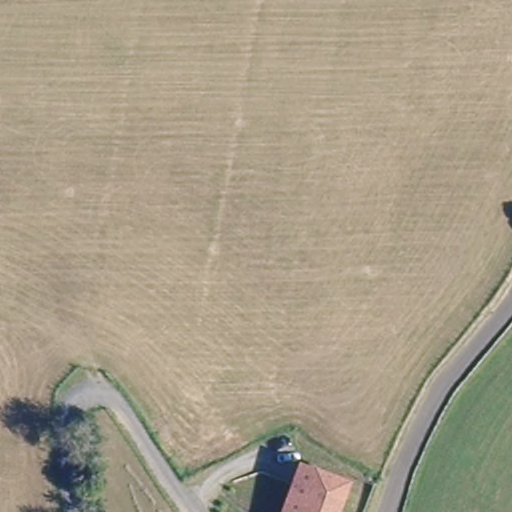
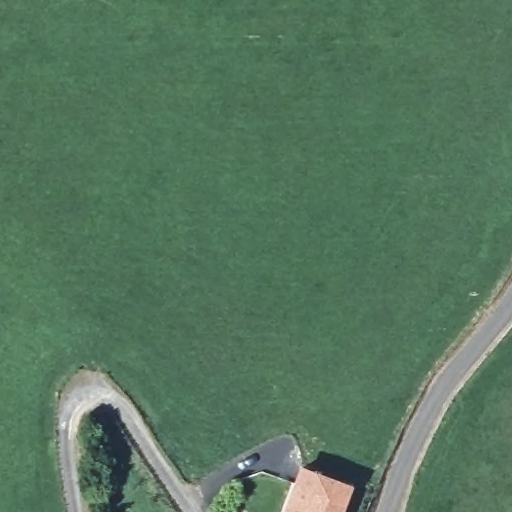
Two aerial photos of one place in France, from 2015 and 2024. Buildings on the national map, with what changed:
unchanged [(354,485),(343,512),(291,512),(307,468),(354,485)]

